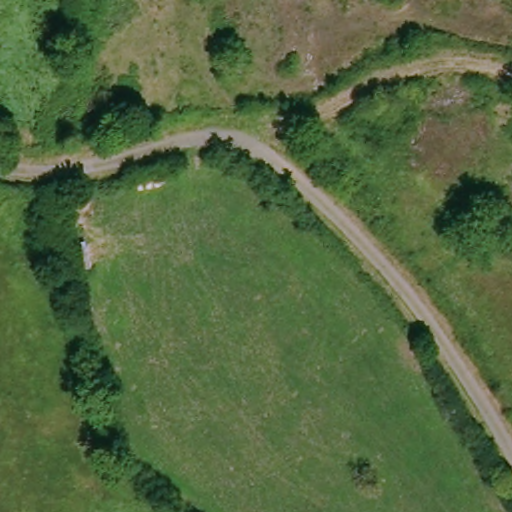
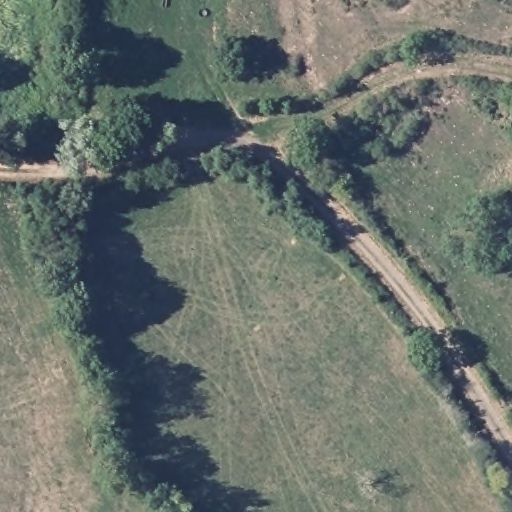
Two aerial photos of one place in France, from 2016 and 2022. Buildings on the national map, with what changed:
unchanged [(95,270),(70,276),(62,250),(88,243),(95,270)]

